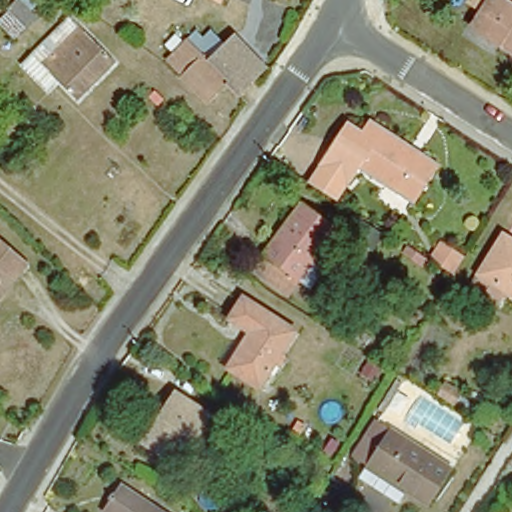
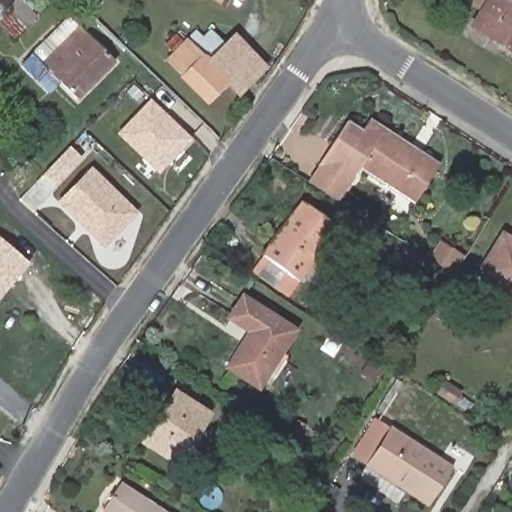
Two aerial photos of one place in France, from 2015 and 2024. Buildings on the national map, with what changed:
unchanged [(0,0),(24,0),(36,14),(6,41),(0,34),(0,0)]
unchanged [(471,28),(480,16),(465,7),(469,0),(498,0),(512,9),(512,54),(471,28)]
unchanged [(74,93),(55,74),(45,85),(31,72),(41,61),(40,59),(46,52),(38,44),(69,14),(76,22),(111,56),(74,93)]
unchanged [(230,30),(260,61),(235,87),(225,77),(204,55),(230,30)]
unchanged [(225,77),(205,97),(163,54),(183,34),(204,55),(225,77)]
unchanged [(159,105),(149,95),(155,90),(164,100),(159,105)]
new [(159,173),(116,134),(150,99),(192,139),(159,173)]
unchanged [(342,129),(357,138),(366,126),(435,170),(412,208),(356,172),(345,190),(314,171),(342,129)]
new [(138,212),(104,247),(57,202),(91,167),(138,212)]
unchanged [(257,251),(255,250),(294,197),(329,223),(310,250),(320,257),(301,283),(281,268),(270,284),(246,266),(257,251)]
unchanged [(480,273),(504,234),(512,239),(512,293),(480,273)]
unchanged [(0,295),(0,241),(27,264),(0,295)]
unchanged [(438,251),(445,242),(460,253),(454,262),(438,251)]
unchanged [(276,361),(271,358),(255,383),(225,363),(247,328),(226,314),(240,292),(290,325),(277,347),(283,351),(276,361)]
unchanged [(439,394),(447,382),(462,392),(454,404),(439,394)]
unchanged [(140,438),(172,389),(204,409),(172,458),(140,438)]
unchanged [(346,464),(377,415),(454,463),(431,499),(413,488),(405,501),(346,464)]
unchanged [(297,433),(302,424),(318,435),(312,444),(297,433)]
unchanged [(120,480),(169,512),(119,512),(105,503),(120,480)]

